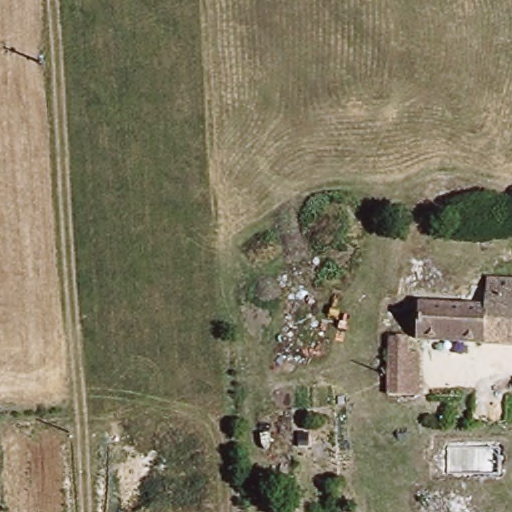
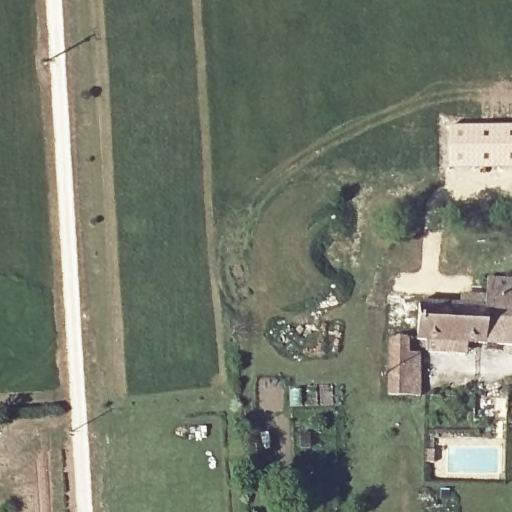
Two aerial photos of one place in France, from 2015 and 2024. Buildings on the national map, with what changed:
new [(512,125),(512,170),(448,168),(448,125),(512,125)]
unchanged [(422,314),(422,301),(492,309),(495,278),(512,280),(512,351),(411,343),(408,368),(432,371),(427,414),(385,410),(393,313),(422,314)]

